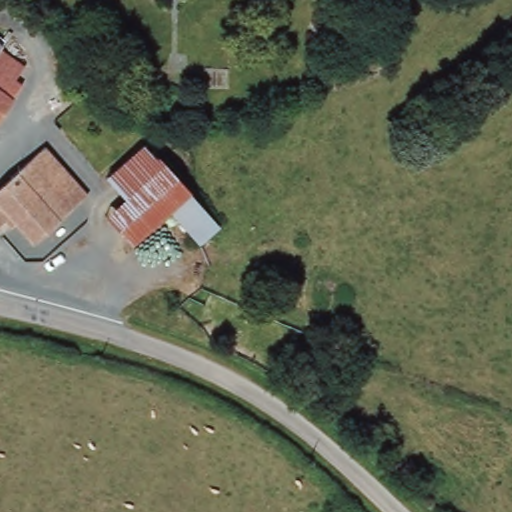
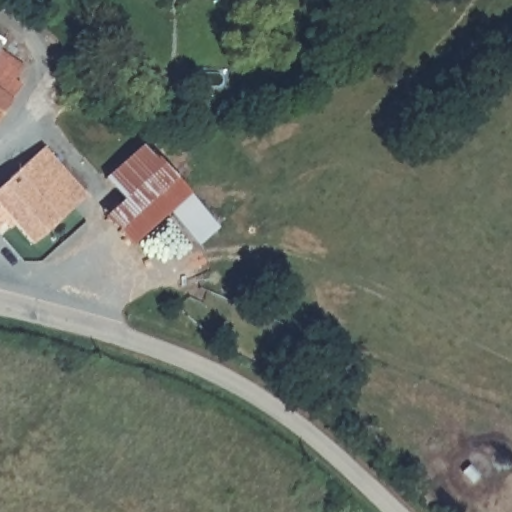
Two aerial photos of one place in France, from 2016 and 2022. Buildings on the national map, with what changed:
unchanged [(0,50),(0,47),(2,48),(0,50)]
unchanged [(22,88),(0,120),(0,58),(21,71),(16,81),(24,86),(22,88)]
unchanged [(89,197),(147,145),(164,164),(217,224),(178,260),(149,231),(132,247),(107,220),(109,219),(89,197)]
unchanged [(45,149),(89,197),(34,245),(11,219),(0,233),(0,189),(45,149)]

